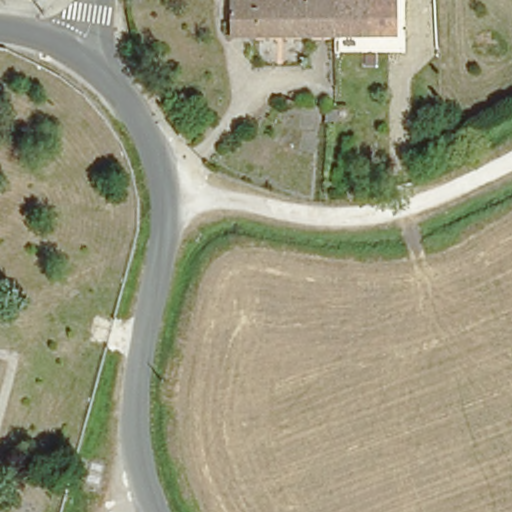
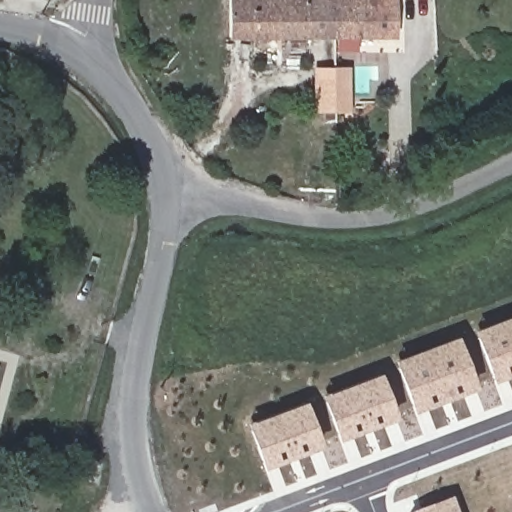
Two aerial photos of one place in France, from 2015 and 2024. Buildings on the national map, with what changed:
unchanged [(231,35),(231,0),(334,0),(334,35),(231,35)]
unchanged [(334,0),(395,0),(396,34),(334,35),(334,0)]
new [(494,380),(475,328),(512,314),(512,373),(494,380)]
new [(415,410),(395,358),(458,334),(478,386),(415,410)]
new [(340,438),(323,392),(381,370),(398,416),(340,438)]
new [(265,467),(248,422),(307,399),(324,444),(265,467)]
new [(510,497),(512,496),(512,502),(510,497)]
new [(455,512),(413,512),(450,498),(455,512)]

